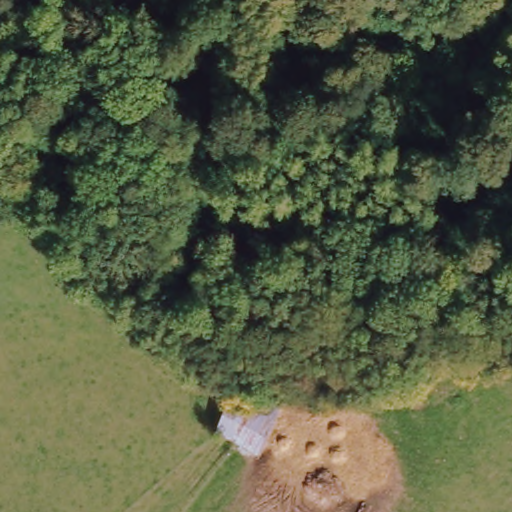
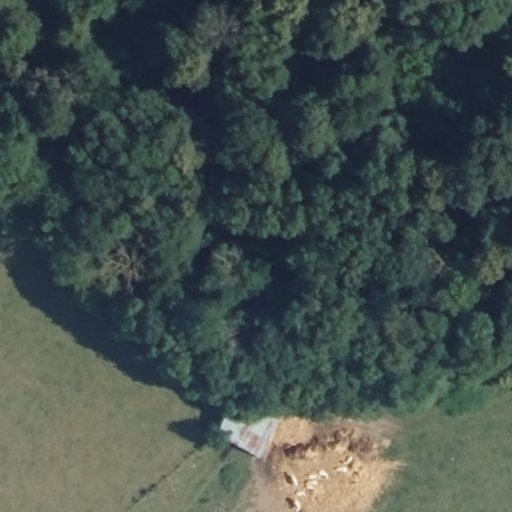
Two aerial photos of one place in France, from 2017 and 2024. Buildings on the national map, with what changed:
unchanged [(232,436),(215,431),(223,410),(238,415),(232,436)]

